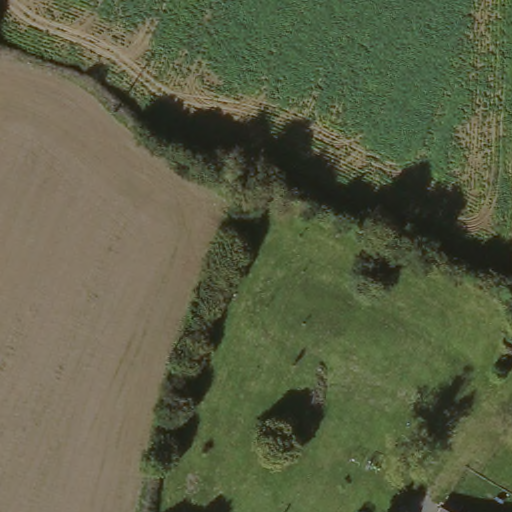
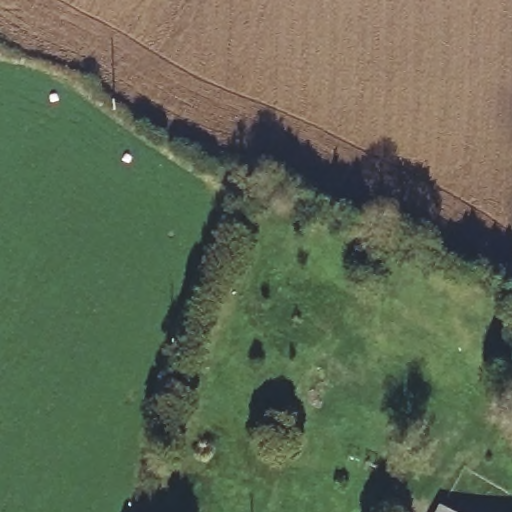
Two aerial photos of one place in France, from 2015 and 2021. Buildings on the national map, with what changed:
[]

